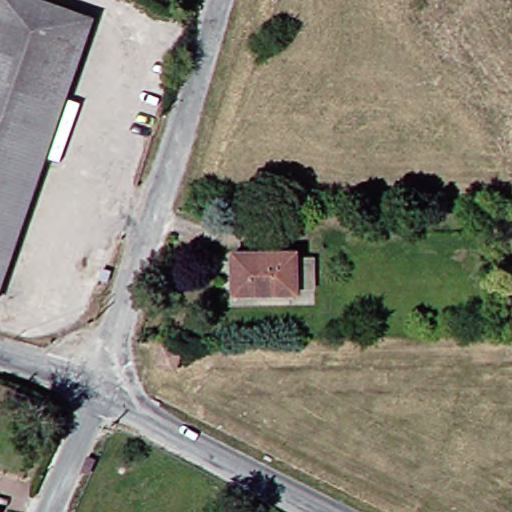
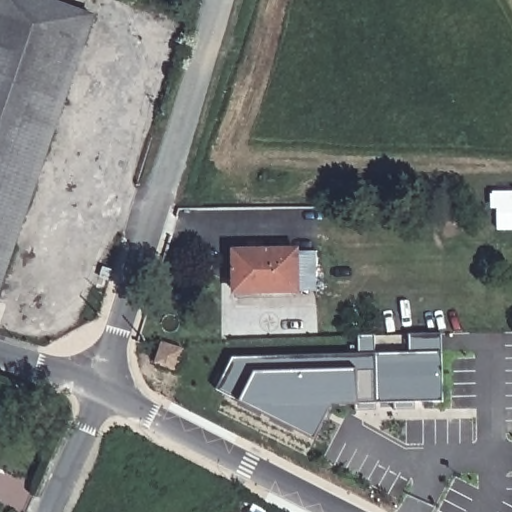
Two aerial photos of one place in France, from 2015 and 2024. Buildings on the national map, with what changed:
unchanged [(1,301),(0,301),(0,0),(47,0),(100,20),(1,301)]
unchanged [(240,294),(240,288),(239,247),(301,247),(301,250),(320,250),(320,282),(302,283),(302,286),(302,292),(240,294)]
new [(221,386),(235,359),(360,354),(359,336),(376,335),(377,354),(413,353),(412,335),(441,334),(444,402),(328,406),(319,439),(282,424),(260,409),(221,386)]

